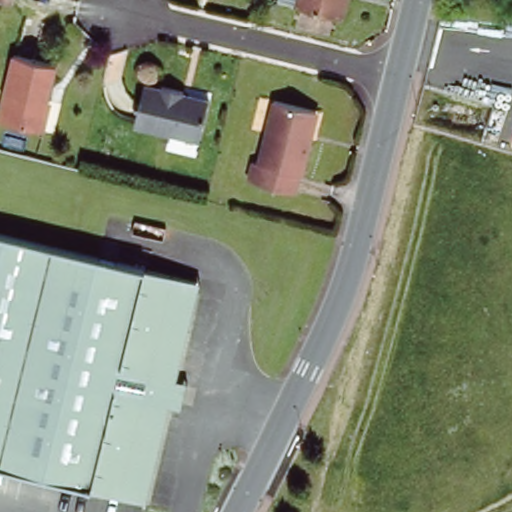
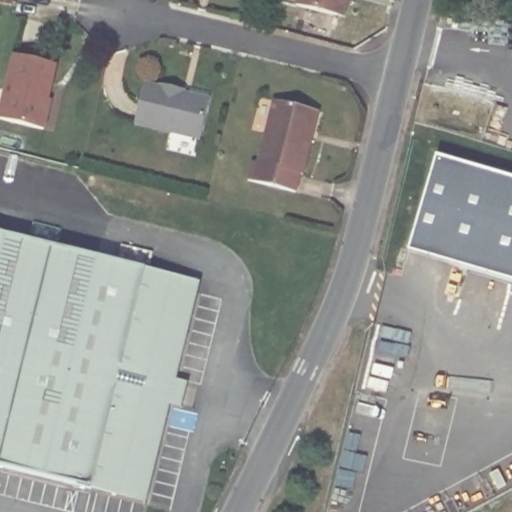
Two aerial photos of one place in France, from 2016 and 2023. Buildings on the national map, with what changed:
unchanged [(345,13),(341,12),(300,0),(298,0),(347,0),(345,13)]
unchanged [(57,60),(46,100),(49,101),(43,123),(0,112),(0,108),(15,50),(57,60)]
unchanged [(162,85),(183,90),(183,93),(208,100),(199,138),(135,122),(145,84),(162,88),(162,85)]
unchanged [(257,161),(272,99),(314,109),(307,137),(310,137),(301,172),(298,171),(294,191),(246,179),(251,160),(257,161)]
new [(410,253),(439,157),(512,178),(512,283),(410,253)]
unchanged [(171,407),(147,506),(0,470),(0,231),(202,280),(177,383),(192,386),(186,411),(171,407)]

